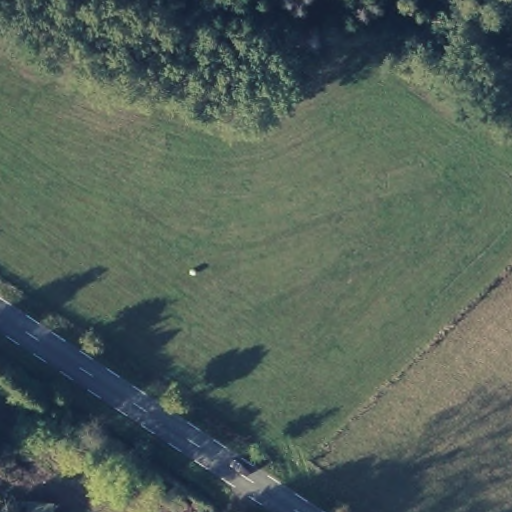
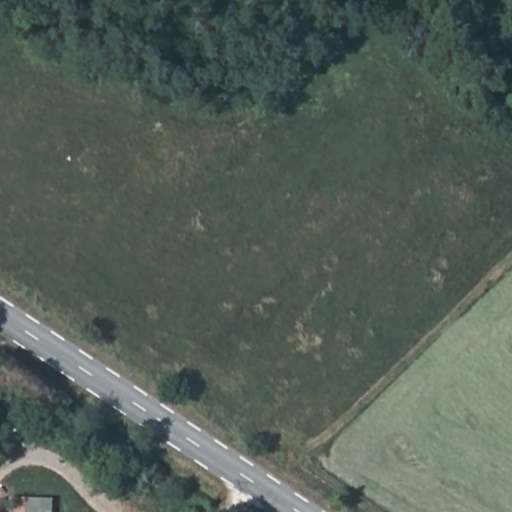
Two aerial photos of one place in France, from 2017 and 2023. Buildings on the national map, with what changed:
unchanged [(65,512),(27,512),(27,504),(65,506),(65,512)]

